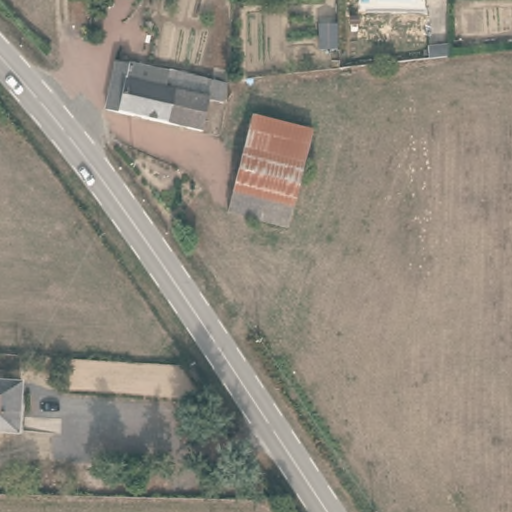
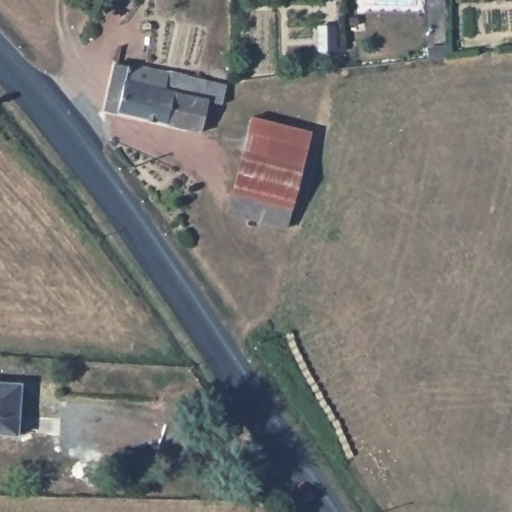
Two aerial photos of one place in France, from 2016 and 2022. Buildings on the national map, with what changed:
unchanged [(221,97),(206,95),(200,125),(105,105),(112,62),(131,66),(131,61),(206,75),(207,68),(218,68),(218,77),(225,79),(221,97)]
unchanged [(250,116),(309,131),(285,229),(229,213),(229,189),(250,116)]
unchanged [(20,383),(18,434),(0,434),(0,383),(20,383)]

